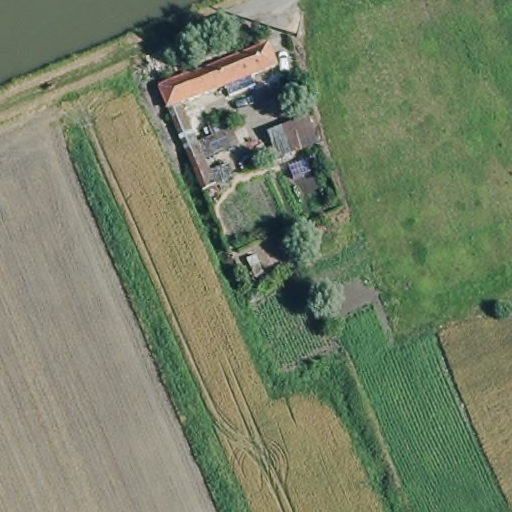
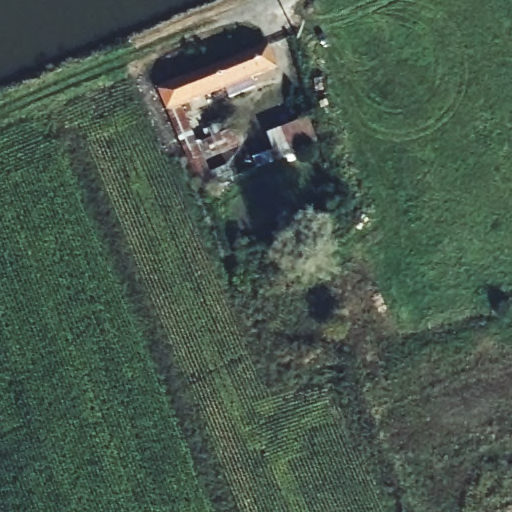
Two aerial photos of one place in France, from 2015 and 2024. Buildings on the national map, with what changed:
unchanged [(269,46),(278,69),(183,105),(214,185),(202,190),(188,153),(171,110),(160,115),(150,92),(269,46)]
unchanged [(305,118),(316,142),(279,155),(270,134),(305,118)]

